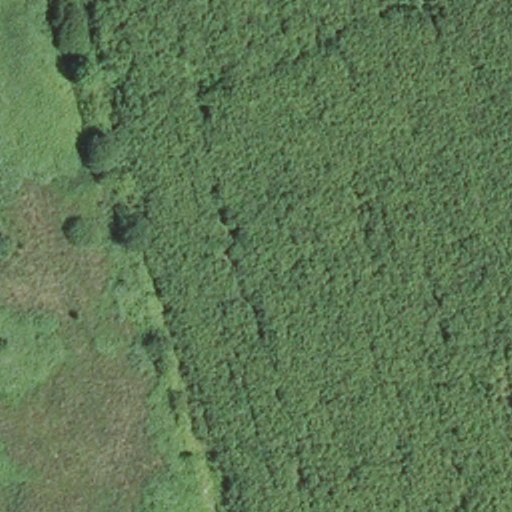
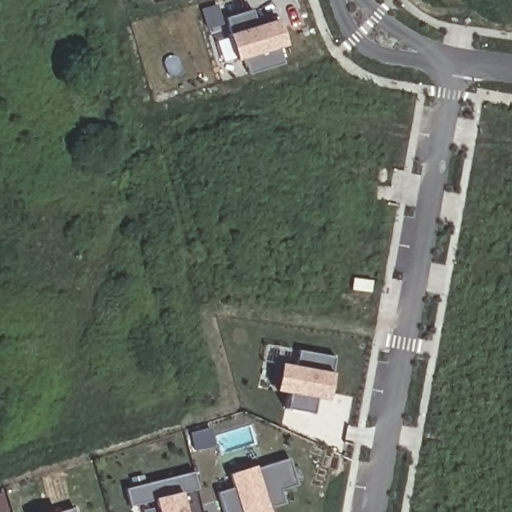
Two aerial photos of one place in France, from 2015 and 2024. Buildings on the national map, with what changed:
new [(254,12),(256,26),(279,20),(287,45),(277,49),(281,63),(247,73),(243,60),(237,62),(228,34),(227,20),(254,12)]
new [(286,409),(289,395),(275,392),(280,363),(293,365),(299,351),(335,358),(330,373),(333,373),(328,401),(315,400),(312,414),(286,409)]
new [(233,489),(229,473),(256,465),(258,468),(288,458),(296,485),(280,490),(284,505),(270,510),(270,512),(223,512),(218,495),(233,489)]
new [(155,500),(129,507),(125,490),(193,473),(198,490),(182,493),(186,512),(157,512),(155,500)]
new [(73,508),(74,512),(62,512),(73,508)]
new [(58,511),(58,512),(56,512),(58,511)]

